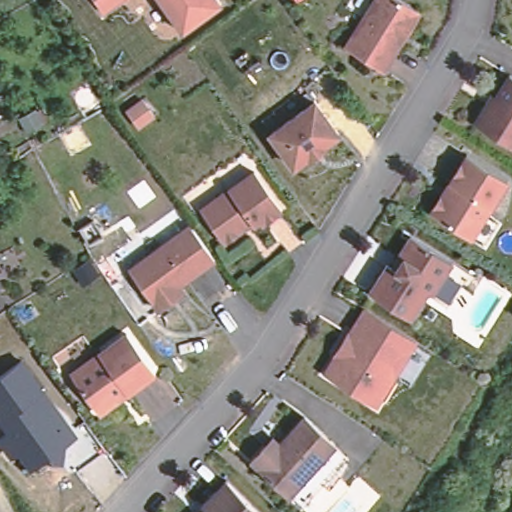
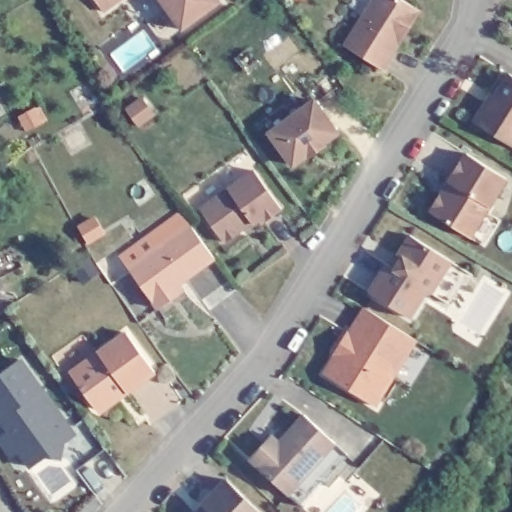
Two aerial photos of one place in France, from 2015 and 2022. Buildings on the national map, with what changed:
unchanged [(107,15),(96,0),(128,0),(107,15)]
unchanged [(222,4),(185,33),(160,0),(219,0),(222,4)]
unchanged [(377,0),(402,0),(418,10),(419,17),(411,29),(406,31),(400,39),(400,47),(385,71),(347,46),(377,0)]
unchanged [(477,124),(488,106),(494,96),(498,99),(511,77),(512,77),(512,145),(477,124)]
unchanged [(339,143),(325,154),(327,157),(312,168),(310,165),(296,175),(272,144),(263,130),(306,98),(316,112),(339,143)]
unchanged [(483,247),(469,239),(433,217),(431,208),(439,196),(445,195),(450,186),(447,183),(464,156),(504,180),(485,213),(498,221),(483,247)]
unchanged [(257,172),(284,210),(264,224),(262,221),(256,225),(253,222),(243,229),(243,231),(227,243),(203,211),(257,172)]
unchanged [(178,297),(161,309),(132,269),(192,225),(217,258),(181,285),(185,291),(178,297)]
unchanged [(450,305),(433,294),(430,292),(412,320),(370,294),(388,265),(396,270),(404,259),(400,257),(412,237),(454,263),(471,273),(450,305)]
unchanged [(412,389),(395,378),(378,405),(327,374),(338,356),(344,357),(357,336),(352,333),(368,309),(418,340),(415,345),(433,356),(412,389)]
unchanged [(125,334),(152,373),(125,393),(122,390),(112,397),(112,401),(100,411),(95,410),(70,374),(125,334)]
unchanged [(0,422),(0,374),(22,358),(43,388),(77,434),(65,444),(62,457),(45,453),(27,467),(17,452),(10,458),(0,444),(0,436),(7,432),(0,422)]
unchanged [(327,440),(281,490),(244,456),(258,440),(265,433),(272,439),(297,412),(327,440)]
unchanged [(327,440),(340,452),(293,502),(281,490),(327,440)]
unchanged [(205,506),(227,481),(261,512),(210,512),(210,511),(205,506)]
unchanged [(366,507),(363,512),(329,512),(348,491),(366,507)]

